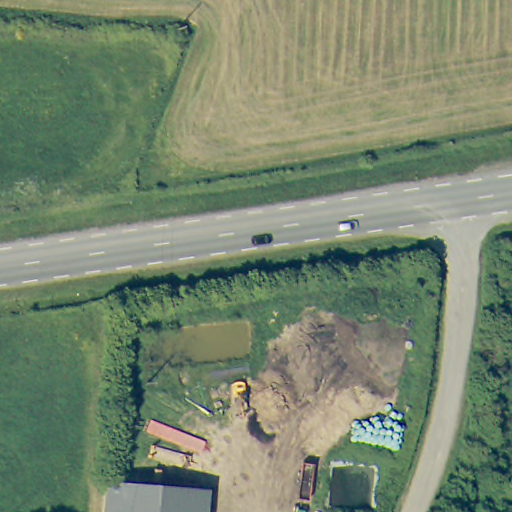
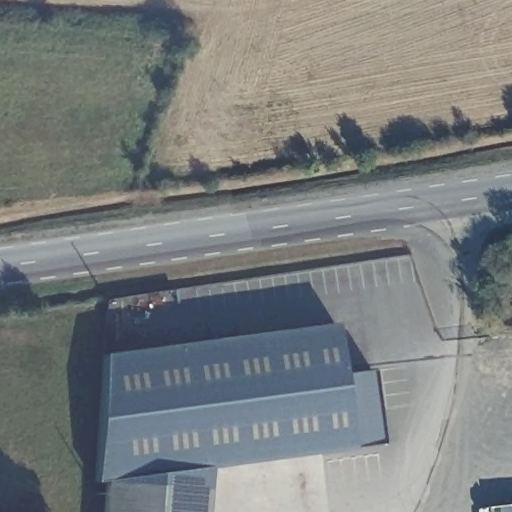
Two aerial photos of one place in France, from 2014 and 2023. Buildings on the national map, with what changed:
new [(95,482),(103,355),(332,322),(340,373),(369,370),(380,444),(201,470),(200,488),(103,483),(95,482)]
unchanged [(200,488),(199,512),(101,512),(103,483),(200,488)]

